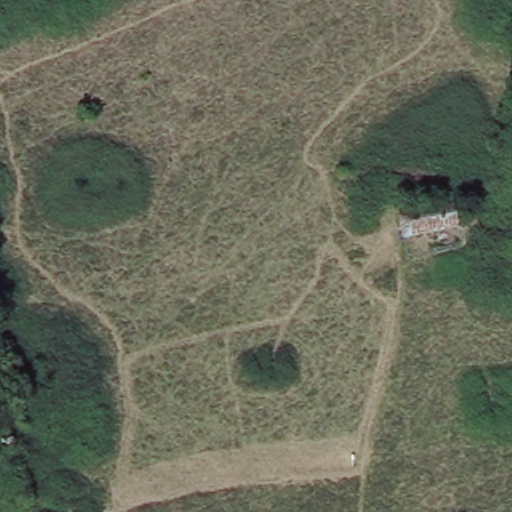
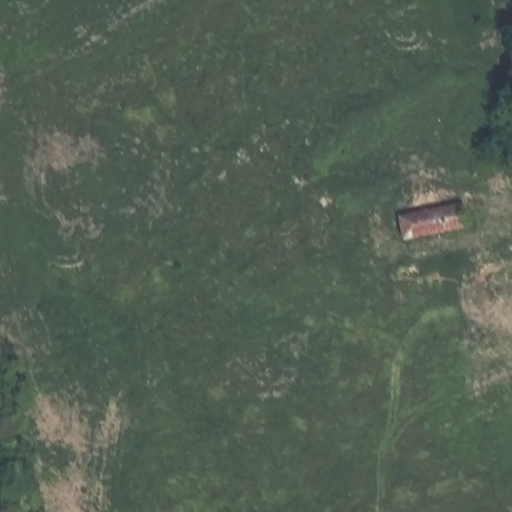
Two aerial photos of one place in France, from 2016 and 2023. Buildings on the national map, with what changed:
unchanged [(395,212),(461,200),(466,227),(400,239),(395,212)]

